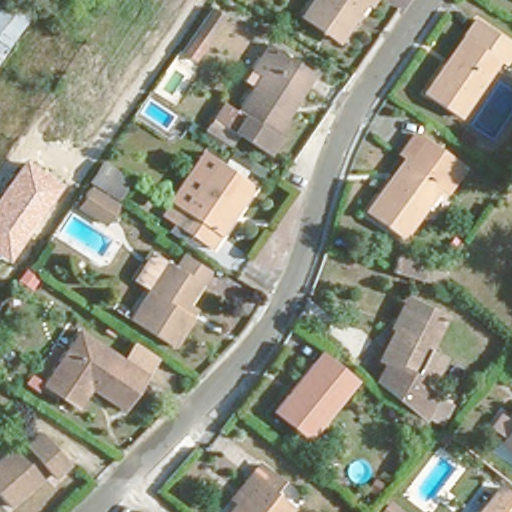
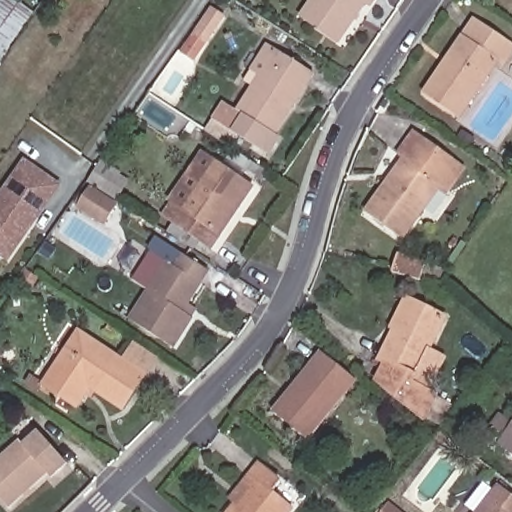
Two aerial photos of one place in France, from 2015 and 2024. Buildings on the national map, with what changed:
unchanged [(0,0),(21,0),(31,7),(0,56),(0,0)]
unchanged [(295,15),(304,0),(348,0),(326,32),(295,15)]
unchanged [(202,58),(185,47),(214,7),(229,17),(202,58)]
unchanged [(445,60),(462,35),(475,17),(512,42),(512,48),(502,62),(497,60),(459,116),(423,91),(445,60)]
unchanged [(205,130),(214,115),(224,99),(238,108),(249,91),(236,84),(245,69),(261,44),(275,51),(310,70),(275,124),(275,131),(278,134),(267,150),(234,129),(225,144),(205,130)]
unchanged [(433,180),(396,234),(363,211),(417,132),(460,161),(443,185),(433,180)]
unchanged [(0,257),(0,192),(25,157),(62,186),(7,262),(0,257)]
unchanged [(184,204),(215,157),(220,160),(220,161),(236,171),(250,180),(208,241),(197,235),(184,225),(171,217),(160,210),(170,194),(184,204)]
unchanged [(105,225),(77,206),(91,185),(88,180),(101,160),(132,184),(115,202),(120,205),(105,225)]
unchanged [(170,343),(129,315),(145,289),(130,280),(150,251),(164,260),(165,257),(174,262),(180,253),(207,271),(198,283),(181,310),(189,315),(170,343)]
unchanged [(430,257),(425,283),(390,278),(397,251),(430,257)]
unchanged [(449,356),(440,378),(432,373),(422,385),(435,400),(453,404),(442,427),(429,421),(373,383),(381,367),(375,362),(391,332),(388,330),(404,296),(448,318),(433,351),(449,356)]
unchanged [(116,405),(85,381),(71,398),(39,375),(77,326),(142,373),(116,405)]
unchanged [(275,408),(319,350),(350,374),(306,431),(275,408)]
unchanged [(490,434),(495,430),(477,418),(489,401),(504,412),(505,411),(512,403),(512,450),(490,434)]
unchanged [(44,466),(5,504),(0,499),(0,451),(15,436),(20,441),(32,427),(65,461),(51,474),(44,466)]
unchanged [(281,480),(275,487),(293,503),(286,512),(226,512),(224,510),(244,488),(235,482),(245,471),(255,460),(281,480)]
unchanged [(495,482),(512,494),(512,505),(507,510),(509,512),(471,512),(495,482)]
unchanged [(390,502),(400,512),(381,512),(390,502)]

